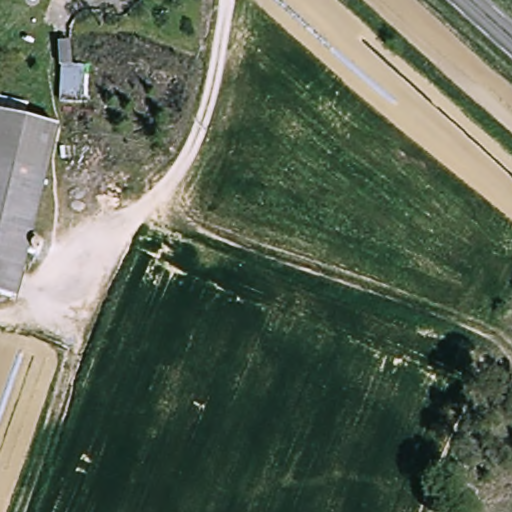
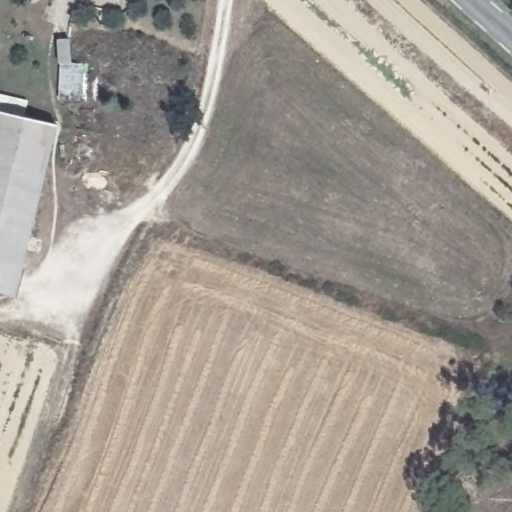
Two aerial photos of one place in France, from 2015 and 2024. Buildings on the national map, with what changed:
unchanged [(48,170),(0,159),(0,108),(59,120),(48,170)]
unchanged [(22,295),(0,290),(0,159),(48,170),(22,295)]

